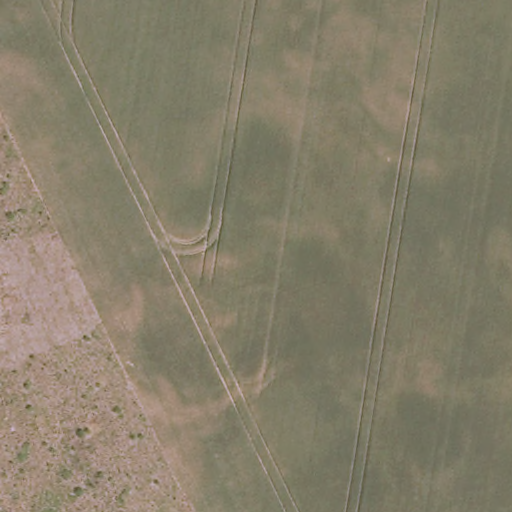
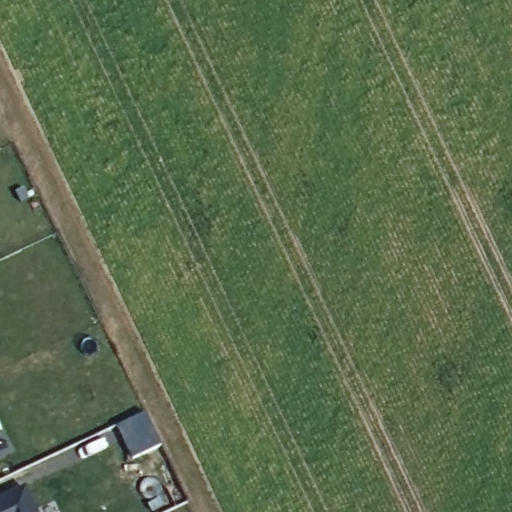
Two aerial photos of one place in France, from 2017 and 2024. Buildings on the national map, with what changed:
new [(144,413),(161,446),(132,460),(116,426),(144,413)]
new [(37,512),(0,512),(0,500),(25,488),(37,512)]

